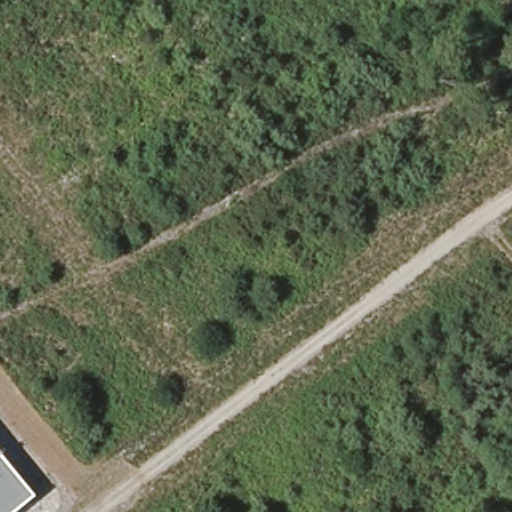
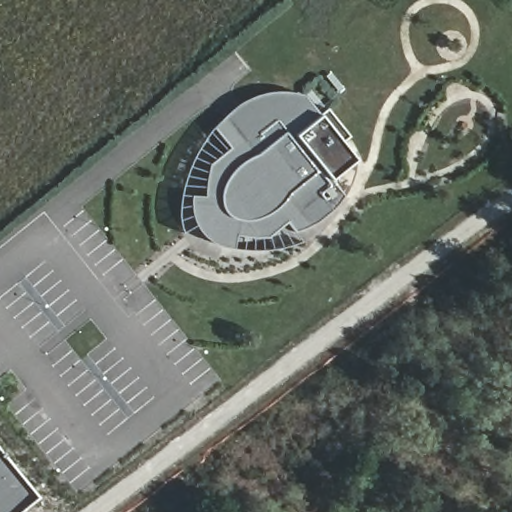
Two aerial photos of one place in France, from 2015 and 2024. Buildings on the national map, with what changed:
new [(223,119),(236,109),(252,100),(268,94),(287,93),(309,96),(323,115),(331,110),(352,138),(344,143),(357,160),(336,177),(347,195),(335,210),(320,219),(312,220),(297,230),(290,224),(286,224),(279,228),(275,233),(272,237),(239,235),(241,218),(234,217),(228,215),(225,208),(223,195),(216,194),(207,197),(206,169),(216,159),(233,149),(215,127),(223,119)]
new [(216,194),(223,195),(225,208),(228,215),(234,217),(241,218),(239,235),(234,235),(231,248),(215,243),(206,238),(196,227),(191,214),(189,207),(190,195),(208,197),(216,194)]
unchanged [(16,512),(0,512),(0,452),(35,496),(16,512)]

